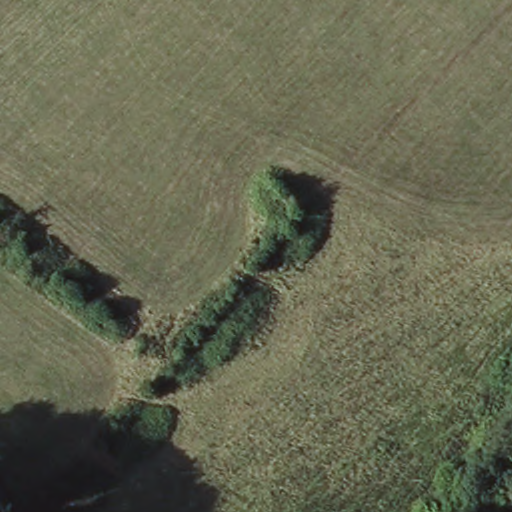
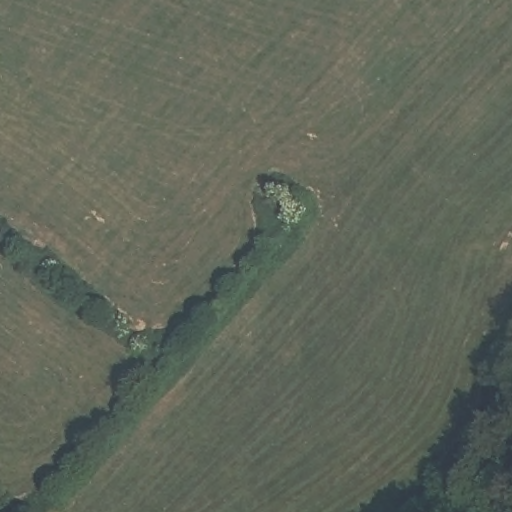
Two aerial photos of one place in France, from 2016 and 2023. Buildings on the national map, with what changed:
unchanged [(258,197),(288,221),(274,238),(245,214),(258,197)]

